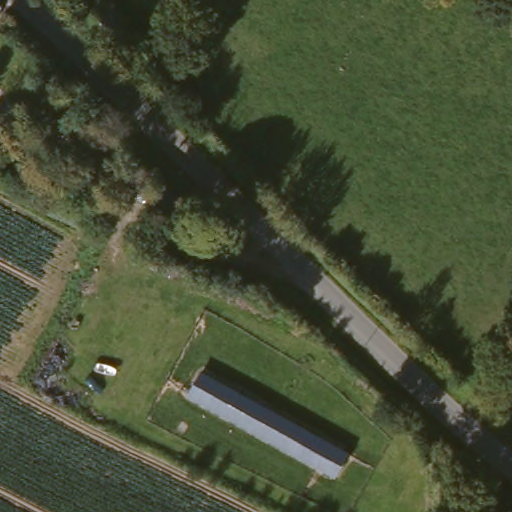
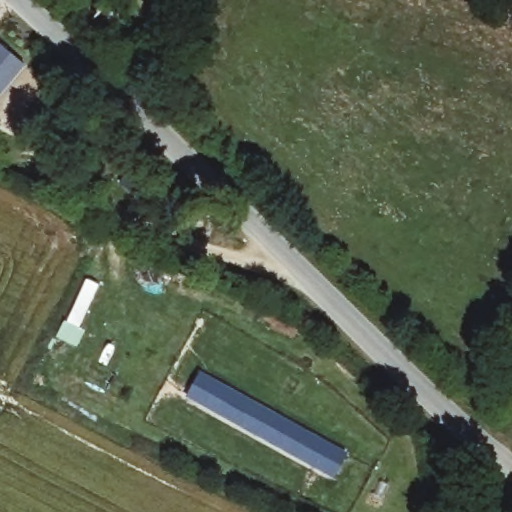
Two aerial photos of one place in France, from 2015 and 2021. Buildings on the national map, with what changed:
unchanged [(0,22),(0,6),(7,12),(0,22)]
new [(25,63),(0,95),(0,43),(25,63)]
unchanged [(185,396),(200,371),(349,454),(336,479),(185,396)]

